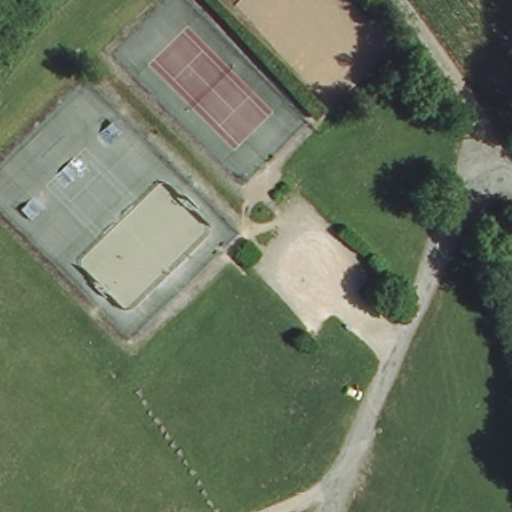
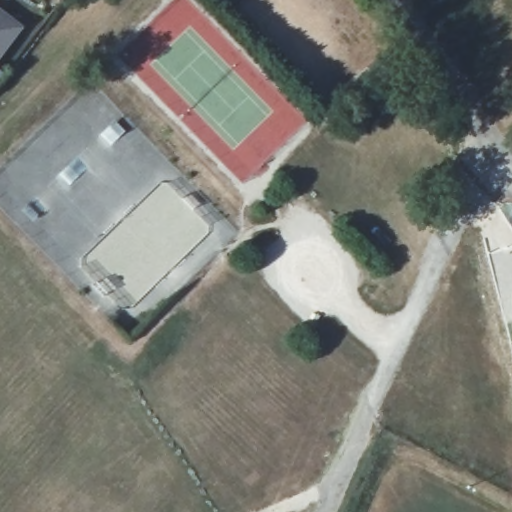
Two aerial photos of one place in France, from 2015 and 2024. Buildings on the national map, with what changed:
new [(25,26),(0,59),(0,8),(25,26)]

